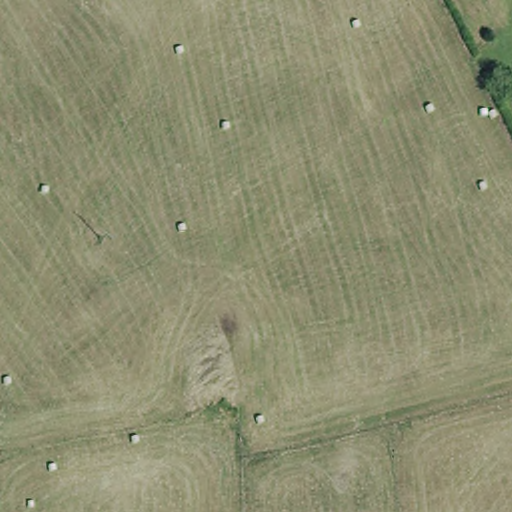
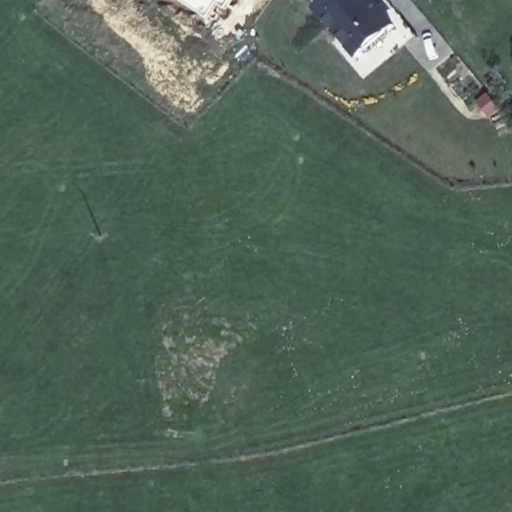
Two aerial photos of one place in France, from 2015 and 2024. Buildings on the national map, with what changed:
new [(217,4),(205,20),(172,0),(230,0),(224,9),(217,4)]
new [(360,61),(312,7),(323,0),(379,0),(403,29),(360,61)]

